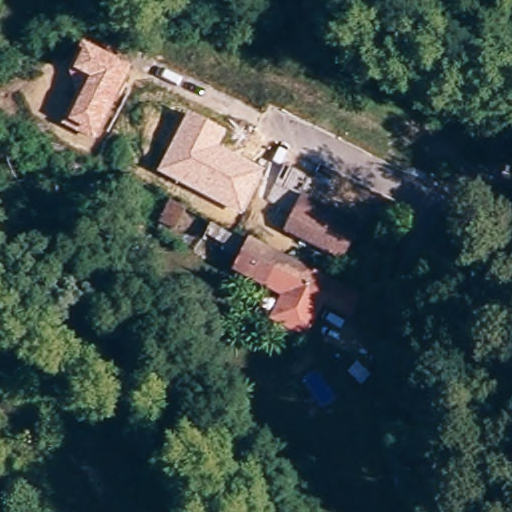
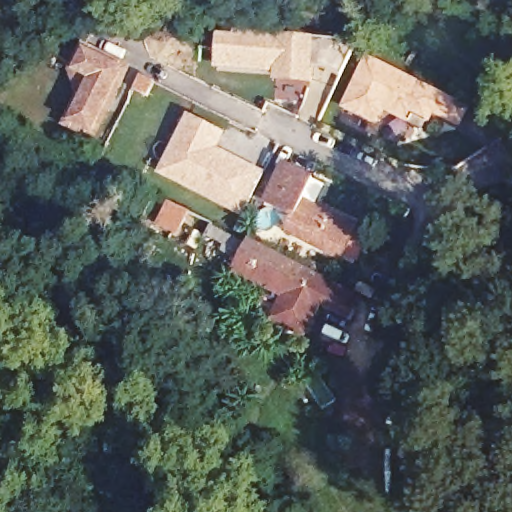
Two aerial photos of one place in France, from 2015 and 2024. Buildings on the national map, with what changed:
new [(324,36),(354,47),(342,75),(322,67),(315,68),(314,82),(272,80),(272,71),(215,67),(218,32),(324,36)]
unchanged [(67,74),(82,41),(131,66),(95,140),(61,125),(84,82),(67,74)]
new [(367,62),(465,112),(457,128),(431,115),(425,125),(412,119),(409,125),(382,111),(375,125),(343,109),(367,62)]
unchanged [(156,174),(187,112),(225,132),(218,147),(263,170),(241,215),(156,174)]
unchanged [(358,227),(341,260),(277,227),(285,210),(284,209),(288,200),(300,205),(303,200),(358,227)]
unchanged [(176,231),(161,225),(171,204),(185,210),(176,231)]
unchanged [(347,320),(318,305),(304,335),(275,320),(286,297),(238,272),(242,263),(223,254),(202,243),(210,226),(231,237),(250,247),(253,242),(330,282),(359,297),(347,320)]

